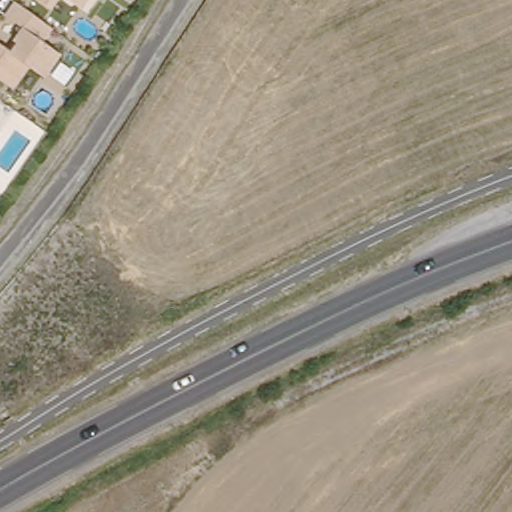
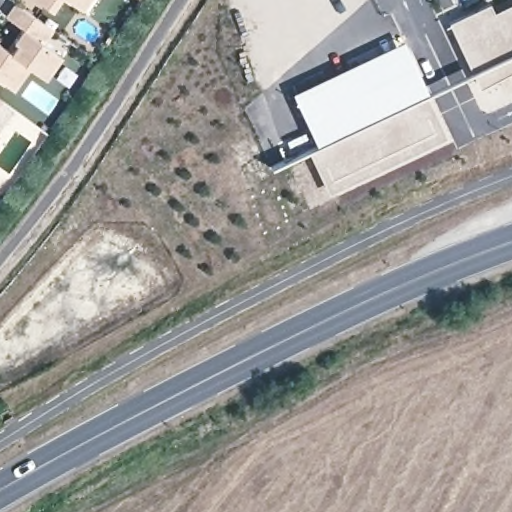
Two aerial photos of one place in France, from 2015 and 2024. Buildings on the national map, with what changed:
unchanged [(12,53),(26,30),(6,14),(15,0),(17,0),(53,27),(46,40),(62,56),(49,78),(30,67),(17,89),(0,77),(0,45),(12,53)]
unchanged [(55,10),(42,0),(62,0),(55,10)]
unchanged [(90,12),(72,0),(98,0),(90,12)]
new [(495,12),(512,4),(512,90),(505,93),(497,78),(480,87),(449,23),(490,3),(495,12)]
new [(403,40),(428,91),(425,93),(447,137),(328,194),(308,151),(319,145),(293,92),(403,40)]

